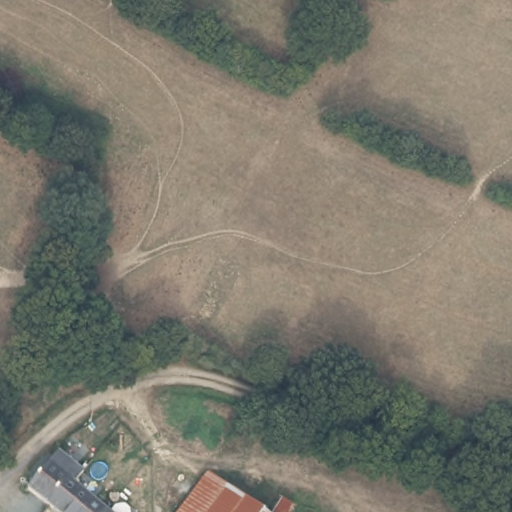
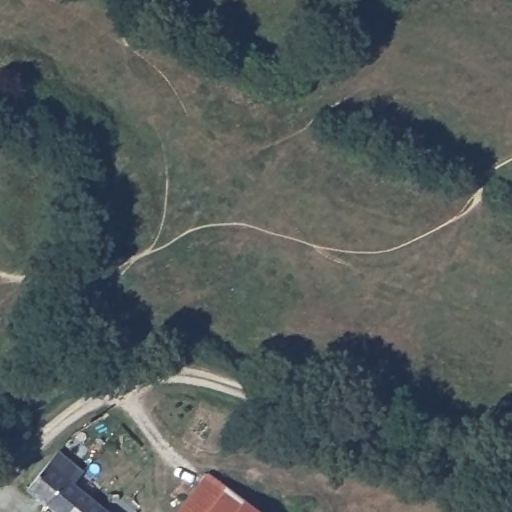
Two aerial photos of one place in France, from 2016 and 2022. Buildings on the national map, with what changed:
unchanged [(74,488),(67,482),(45,508),(27,493),(49,468),(58,456),(81,474),(84,475),(74,488)]
unchanged [(178,512),(207,473),(245,501),(237,512),(178,512)]
unchanged [(67,482),(74,488),(81,493),(103,512),(50,512),(45,508),(67,482)]
unchanged [(260,512),(237,512),(245,501),(260,512)]
unchanged [(121,512),(110,512),(115,507),(121,512)]

